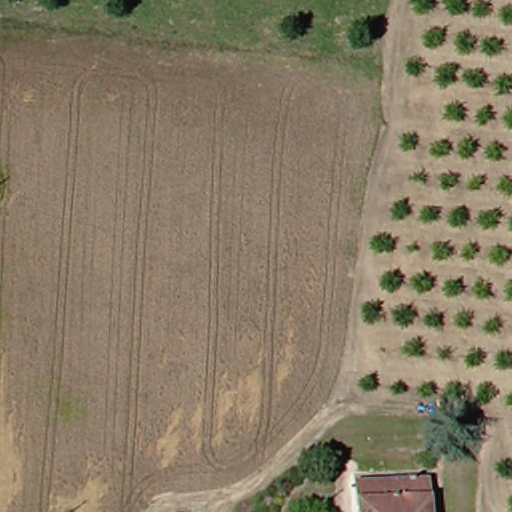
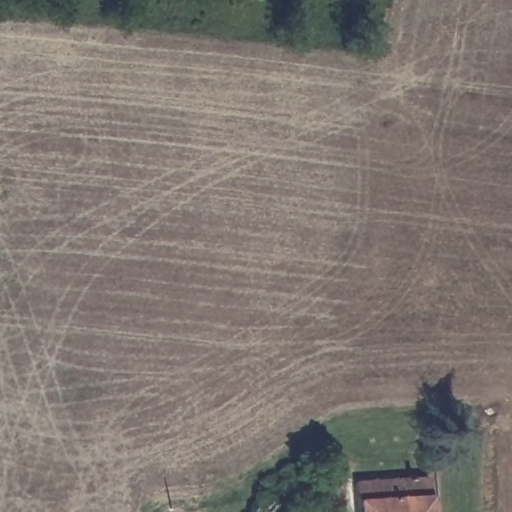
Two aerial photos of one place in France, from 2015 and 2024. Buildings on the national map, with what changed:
unchanged [(357,485),(432,480),(435,512),(360,512),(357,485)]

